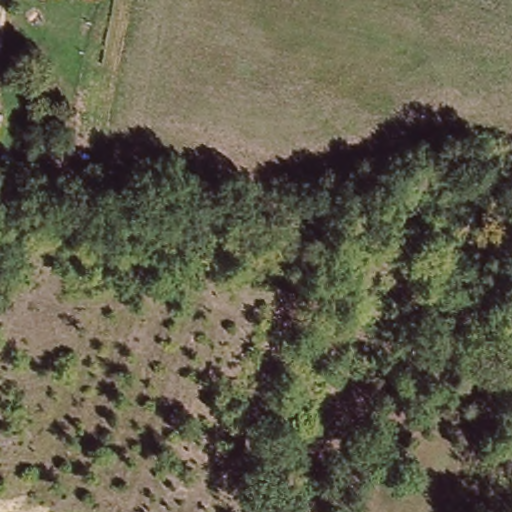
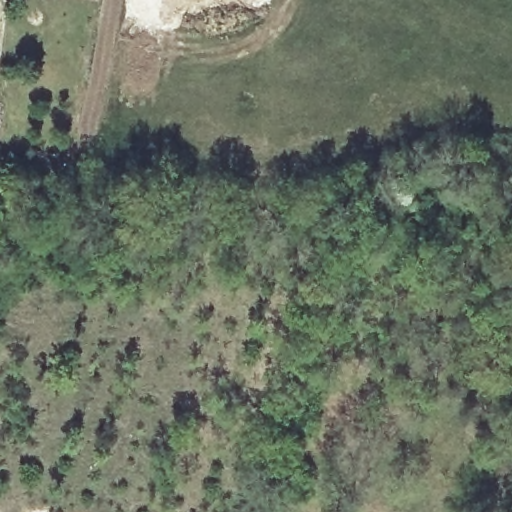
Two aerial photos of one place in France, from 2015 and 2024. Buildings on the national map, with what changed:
[]

